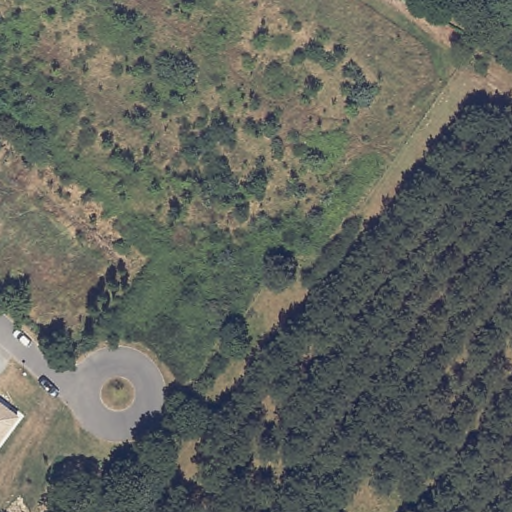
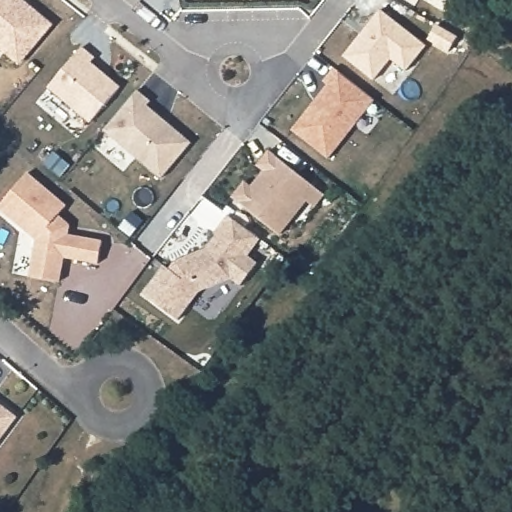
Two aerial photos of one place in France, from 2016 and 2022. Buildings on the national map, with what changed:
new [(19,66),(0,50),(0,0),(24,0),(53,25),(19,66)]
new [(447,10),(429,0),(453,0),(447,10)]
new [(380,12),(426,48),(406,73),(391,61),(374,82),(344,58),(380,12)]
new [(82,47),(95,57),(91,62),(120,87),(90,122),(48,87),(82,47)]
new [(328,85),(323,81),(333,69),(374,101),(328,159),(292,130),(328,85)]
new [(136,89),(149,101),(147,105),(191,142),(160,179),(103,131),(136,89)]
unchanged [(326,193),(316,207),(308,201),(284,232),(233,197),(244,180),(253,185),(264,170),(258,165),(270,150),(326,193)]
new [(27,175),(66,207),(58,217),(65,222),(63,236),(103,242),(99,264),(64,258),(60,283),(31,278),(37,241),(11,220),(13,217),(0,207),(27,175)]
new [(164,264),(168,267),(174,260),(206,247),(216,235),(213,233),(228,215),(260,238),(248,255),(257,261),(240,285),(230,278),(197,292),(178,320),(143,293),(164,264)]
unchanged [(0,440),(0,404),(17,417),(0,440)]

